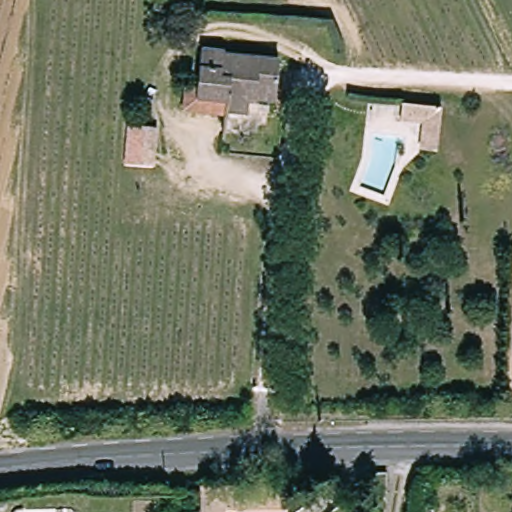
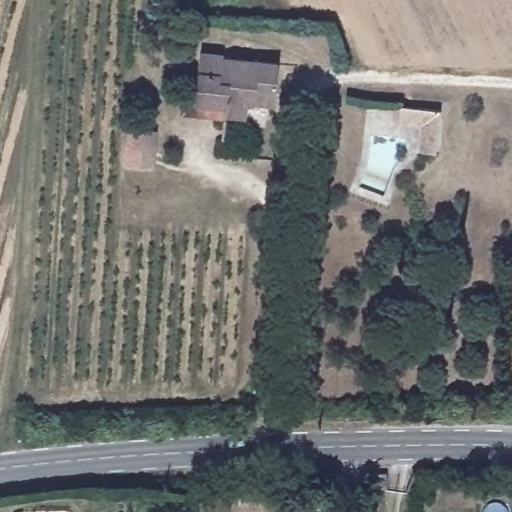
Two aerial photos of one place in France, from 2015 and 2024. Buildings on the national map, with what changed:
unchanged [(228,52),(227,59),(275,64),(271,104),(253,101),(251,113),(231,111),(232,102),(200,99),(201,87),(205,49),(228,52)]
unchanged [(230,120),(183,115),(186,85),(201,87),(200,99),(232,102),(231,111),(230,120)]
unchanged [(444,111),(438,150),(424,148),(422,123),(404,123),(407,106),(444,111)]
unchanged [(154,167),(123,165),(125,131),(156,130),(154,167)]
unchanged [(291,512),(237,512),(237,511),(229,511),(229,512),(204,512),(203,493),(290,491),(291,512)]

